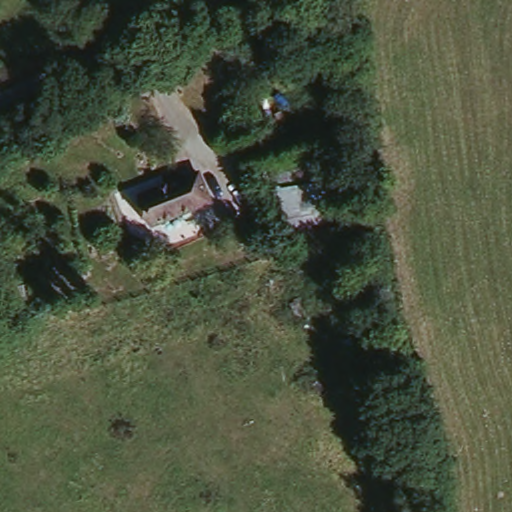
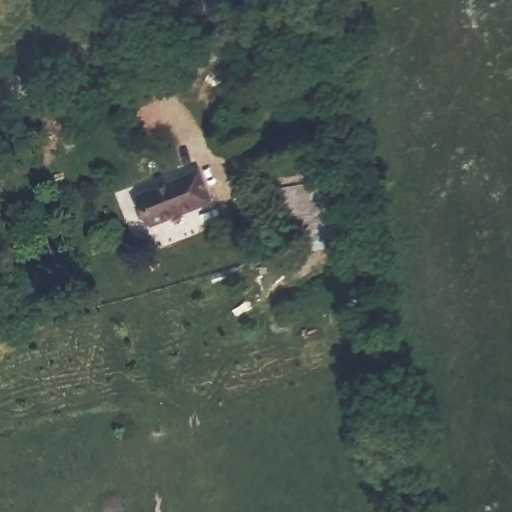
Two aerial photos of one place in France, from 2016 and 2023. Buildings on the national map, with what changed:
unchanged [(138,199),(180,182),(192,177),(202,207),(191,212),(149,229),(138,199)]

